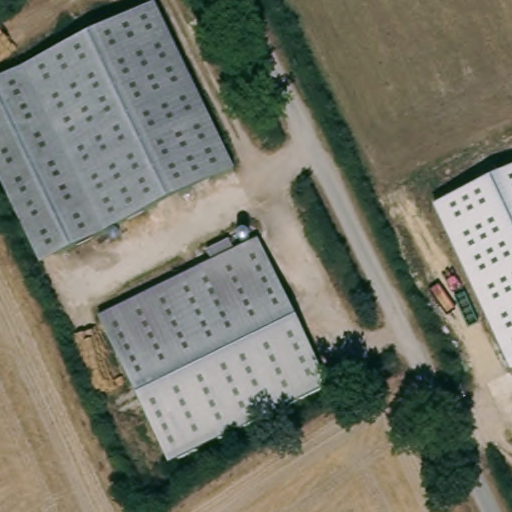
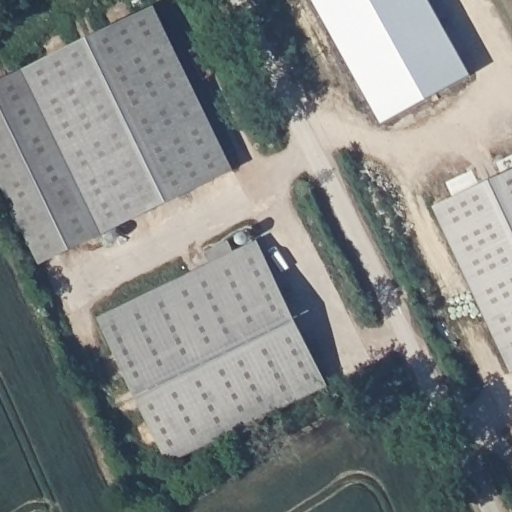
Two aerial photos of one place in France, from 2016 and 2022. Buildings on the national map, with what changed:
new [(315,0),(429,0),(469,75),(382,122),(315,0)]
unchanged [(157,6),(239,169),(46,267),(0,176),(0,87),(157,6)]
unchanged [(512,172),(512,373),(511,373),(434,207),(512,172)]
unchanged [(326,385),(168,464),(98,320),(257,240),(326,385)]

